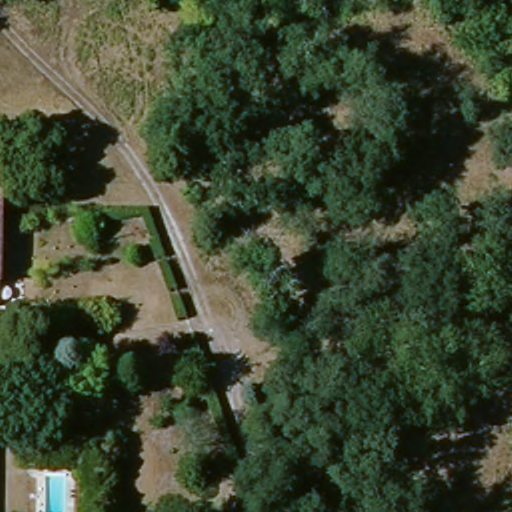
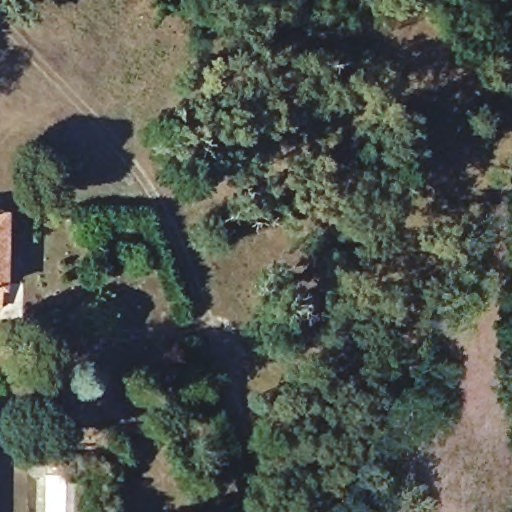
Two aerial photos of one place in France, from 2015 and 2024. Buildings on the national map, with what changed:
unchanged [(7,313),(0,313),(0,212),(11,212),(7,313)]

